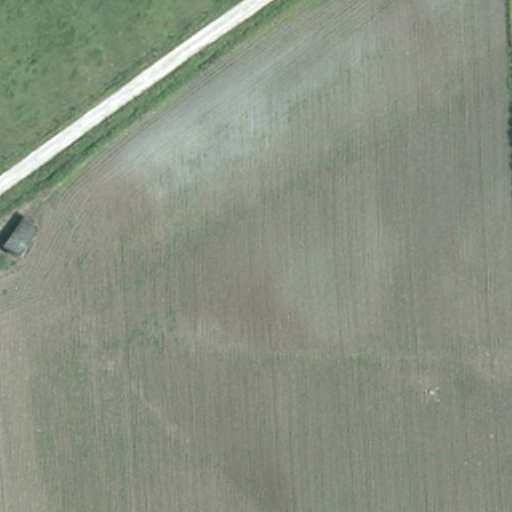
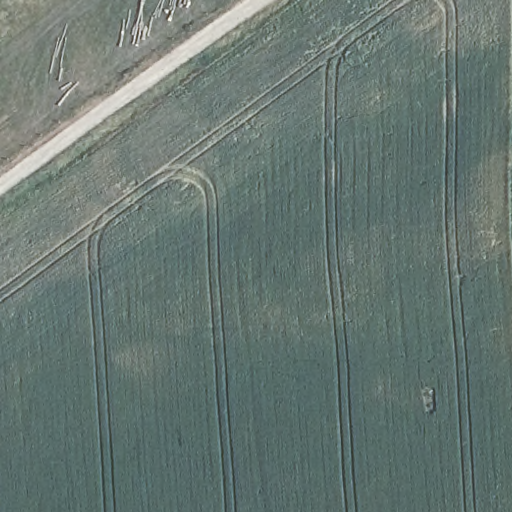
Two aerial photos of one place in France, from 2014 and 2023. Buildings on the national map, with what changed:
unchanged [(50,229),(33,255),(17,247),(35,219),(50,229)]

